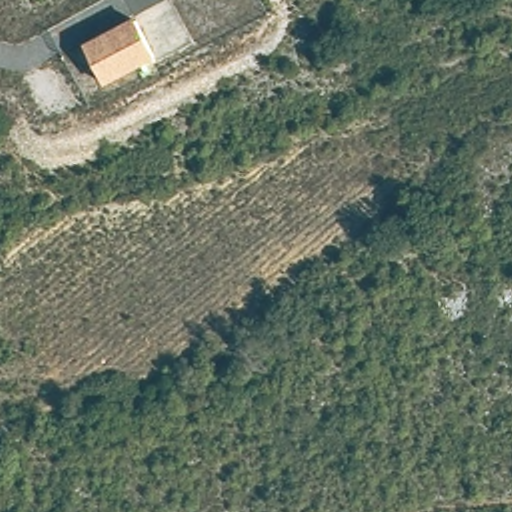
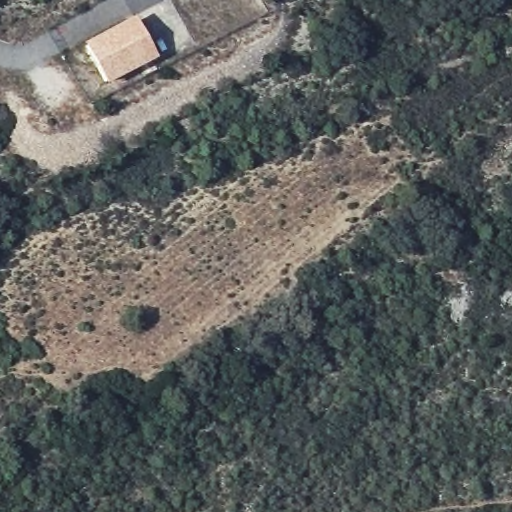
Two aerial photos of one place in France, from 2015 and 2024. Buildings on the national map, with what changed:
unchanged [(135,19),(155,61),(104,84),(85,44),(135,19)]

